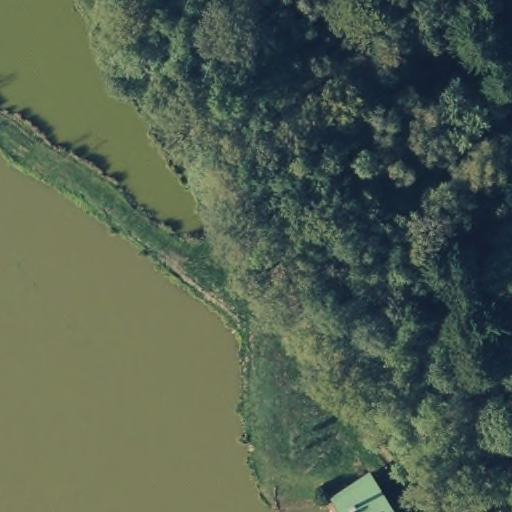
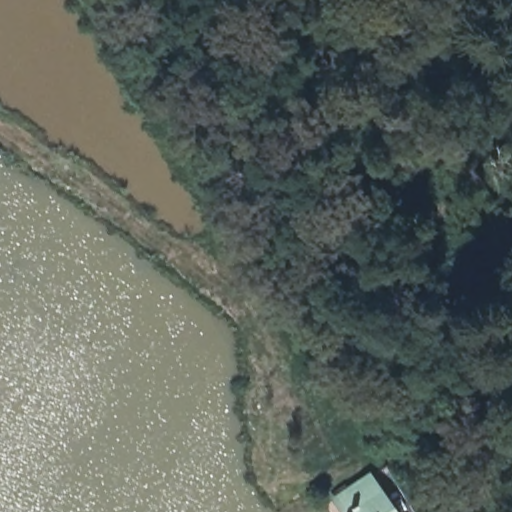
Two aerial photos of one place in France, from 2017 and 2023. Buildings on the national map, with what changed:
unchanged [(377,462),(413,512),(341,512),(326,490),(377,462)]

